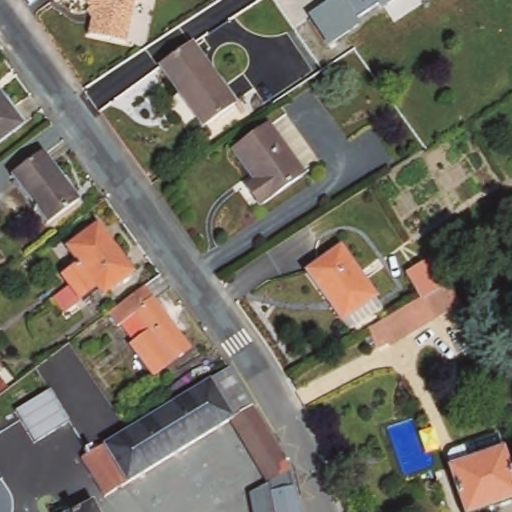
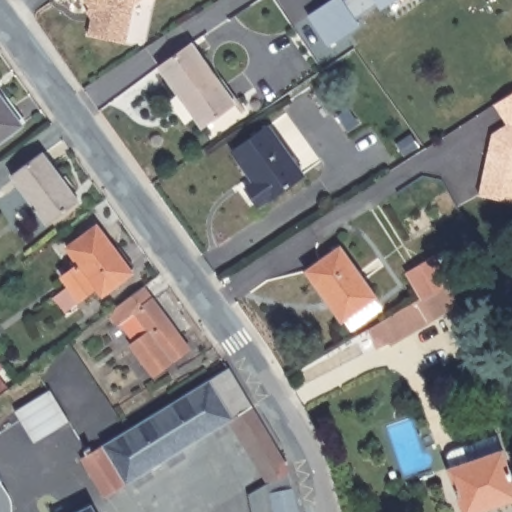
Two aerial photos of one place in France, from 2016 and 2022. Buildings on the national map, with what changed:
unchanged [(122,41),(85,34),(92,21),(84,10),(89,6),(85,0),(139,0),(130,6),(122,41)]
unchanged [(331,0),(344,0),(395,0),(379,11),(376,6),(356,20),(359,26),(328,48),(307,16),(331,0)]
unchanged [(190,45),(231,102),(199,125),(157,67),(190,45)]
new [(478,195),(492,133),(507,125),(494,105),(512,94),(512,202),(478,195)]
unchanged [(0,133),(0,106),(13,123),(0,133)]
unchanged [(301,178),(262,207),(244,182),(252,176),(233,150),(263,130),(301,178)]
unchanged [(38,153),(75,201),(44,226),(7,178),(38,153)]
unchanged [(100,292),(95,283),(79,295),(64,272),(78,261),(68,246),(94,226),(128,271),(100,292)]
unchanged [(355,333),(346,322),(338,327),(302,274),(336,251),(373,304),(380,316),(355,333)]
unchanged [(401,275),(430,256),(447,281),(420,298),(418,300),(401,275)]
unchanged [(189,346),(153,372),(131,342),(137,336),(125,318),(118,324),(109,314),(144,287),(189,346)]
unchanged [(380,324),(418,300),(420,298),(433,319),(389,349),(380,324)]
unchanged [(0,371),(0,366),(2,369),(0,371)]
unchanged [(245,401),(247,404),(227,417),(105,499),(80,461),(221,367),(222,367),(245,401)]
unchanged [(0,392),(0,379),(6,388),(0,392)]
unchanged [(50,391),(68,422),(32,441),(15,411),(50,391)]
unchanged [(266,475),(227,417),(247,404),(286,462),(288,470),(293,493),(297,512),(272,512),(266,475)]
unchanged [(467,512),(466,512),(452,470),(475,461),(470,451),(488,445),(485,439),(498,433),(500,441),(502,451),(512,478),(512,496),(467,512)]
unchanged [(0,483),(8,498),(10,509),(10,512),(0,512),(0,483)]
unchanged [(91,512),(84,512),(89,509),(91,512)]

